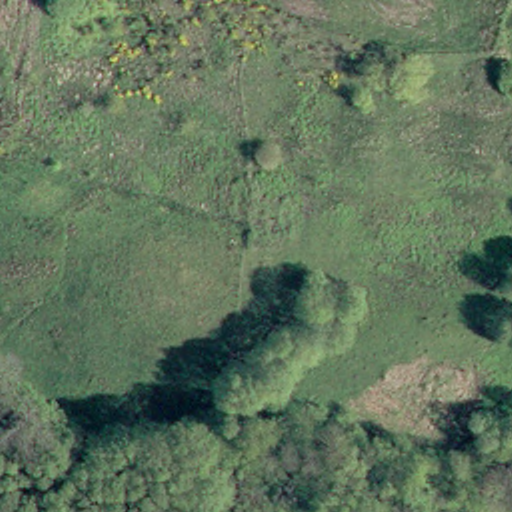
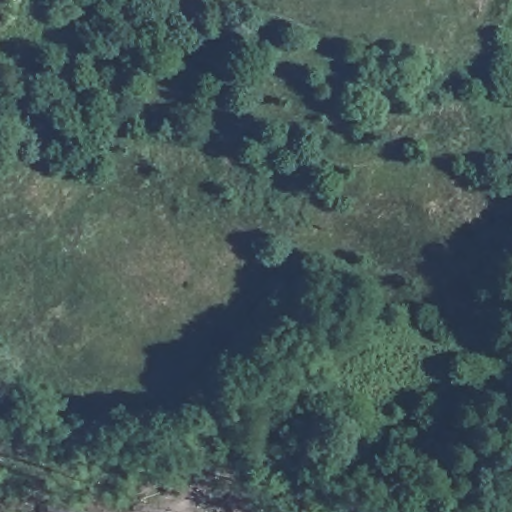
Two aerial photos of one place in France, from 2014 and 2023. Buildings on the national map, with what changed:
[]

